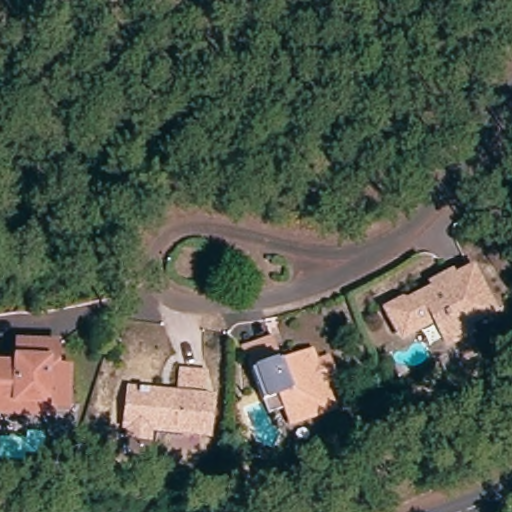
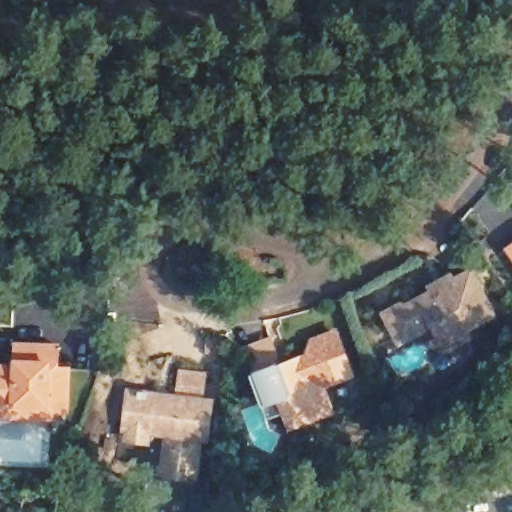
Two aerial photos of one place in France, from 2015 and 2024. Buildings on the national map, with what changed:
new [(512,240),(512,261),(503,247),(512,240)]
unchanged [(494,310),(467,324),(468,327),(445,339),(434,318),(402,335),(388,308),(404,299),(409,302),(438,288),(435,283),(452,275),(453,278),(473,268),(494,310)]
unchanged [(282,411),(266,417),(262,404),(244,356),(239,344),(271,332),(275,345),(282,363),(311,352),(314,362),(328,358),(335,379),(322,384),(332,410),(302,421),(287,426),(284,418),(282,411)]
unchanged [(0,364),(13,365),(15,343),(55,346),(53,375),(65,376),(61,413),(0,408),(0,364)]
unchanged [(124,432),(125,422),(129,387),(170,391),(176,386),(178,386),(180,364),(202,366),(199,393),(205,393),(202,423),(197,423),(196,429),(148,424),(146,434),(124,432)]
unchanged [(45,420),(45,427),(0,423),(0,408),(61,413),(60,422),(45,420)]

